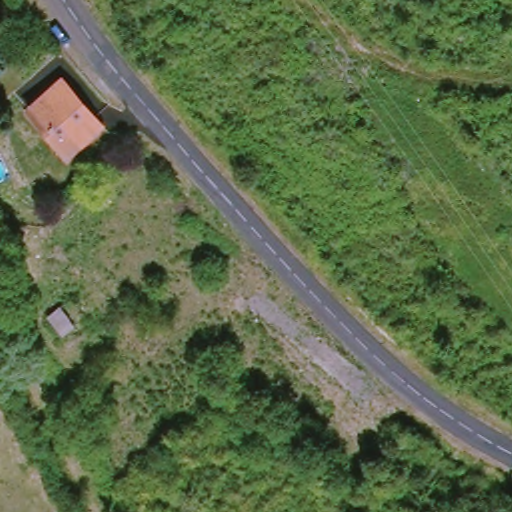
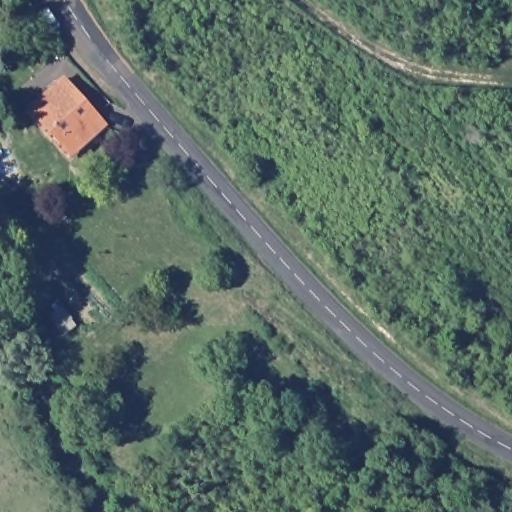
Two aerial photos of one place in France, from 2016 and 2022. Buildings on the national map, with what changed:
unchanged [(68,77),(110,127),(73,163),(28,113),(68,77)]

